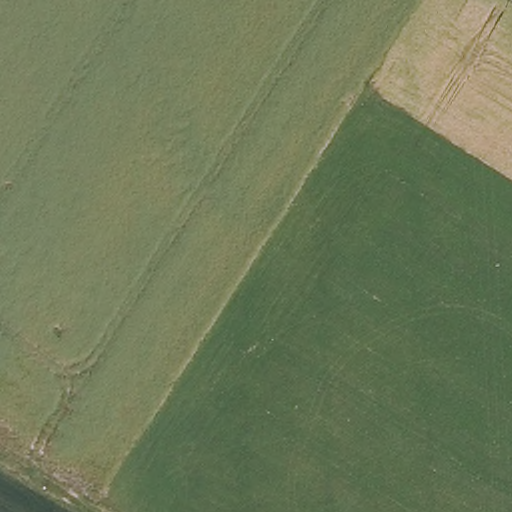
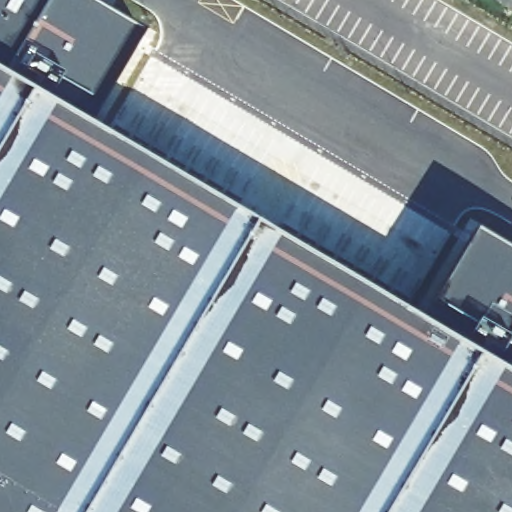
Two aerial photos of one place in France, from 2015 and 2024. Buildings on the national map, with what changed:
new [(72,0),(137,39),(83,131),(415,329),(470,234),(512,259),(512,512),(0,512),(0,0),(72,0)]

